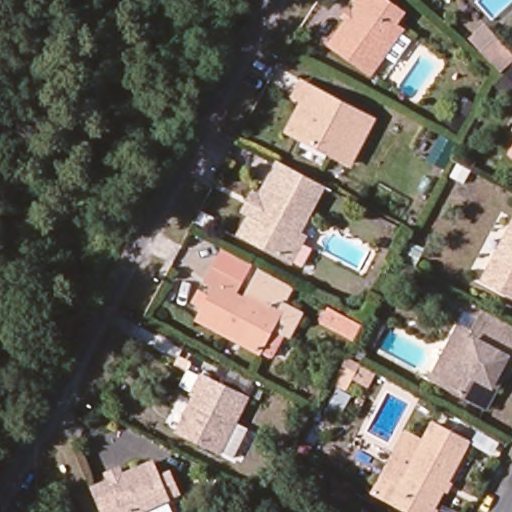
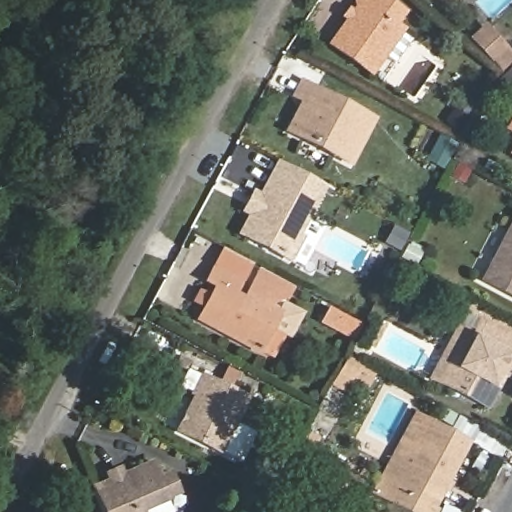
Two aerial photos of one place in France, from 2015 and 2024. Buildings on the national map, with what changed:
unchanged [(354,0),(389,0),(402,9),(395,21),(401,26),(400,28),(411,35),(395,58),(385,50),(371,70),(328,40),(355,3),(354,0)]
unchanged [(496,42),(483,54),(471,40),(484,29),(496,42)]
unchanged [(512,71),(507,66),(512,62),(512,71)]
unchanged [(372,121),(350,165),(286,133),(302,101),(307,104),(313,90),(372,121)]
unchanged [(460,98),(474,106),(457,131),(445,122),(460,98)]
unchanged [(434,152),(440,140),(452,147),(445,159),(434,152)]
unchanged [(512,152),(512,156),(510,155),(512,152)]
unchanged [(452,161),(456,154),(475,163),(470,170),(452,161)]
unchanged [(323,187),(321,190),(298,234),(303,238),(290,262),(239,234),(251,212),(257,212),(260,206),(257,201),(277,163),(323,187)]
unchanged [(512,221),(512,298),(481,282),(512,221)]
unchanged [(401,258),(407,247),(420,254),(415,265),(401,258)]
unchanged [(243,296),(245,292),(249,293),(278,309),(271,323),(285,329),(271,355),(197,316),(215,282),(205,277),(218,252),(245,264),(232,290),(243,296)]
unchanged [(258,268),(292,283),(286,299),(302,311),(291,333),(285,329),(271,323),(278,309),(249,293),(258,268)]
unchanged [(351,341),(320,324),(327,309),(360,327),(351,341)]
unchanged [(512,373),(506,383),(503,382),(494,398),(488,394),(480,411),(438,389),(447,373),(456,377),(473,344),(471,344),(478,329),(512,347),(512,373)]
unchanged [(355,344),(368,351),(362,361),(350,354),(355,344)]
unchanged [(342,394),(349,398),(335,422),(323,414),(337,391),(331,388),(346,359),(358,365),(342,394)]
unchanged [(222,369),(251,386),(246,394),(217,379),(222,369)]
unchanged [(240,399),(229,424),(242,431),(228,459),(171,432),(187,399),(170,391),(180,371),(240,399)]
unchanged [(467,444),(431,512),(403,512),(387,504),(371,496),(381,476),(396,447),(413,415),(467,444)]
unchanged [(151,459),(157,474),(168,469),(177,491),(140,508),(142,512),(103,512),(91,484),(151,459)]
unchanged [(356,501),(360,492),(387,507),(384,512),(376,512),(356,501)]
unchanged [(248,496),(262,504),(258,512),(240,512),(248,496)]

